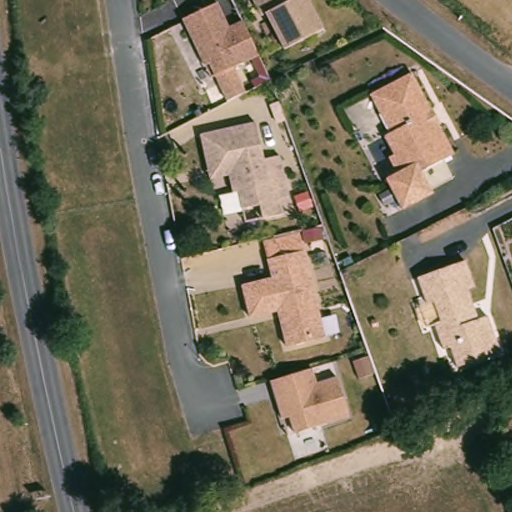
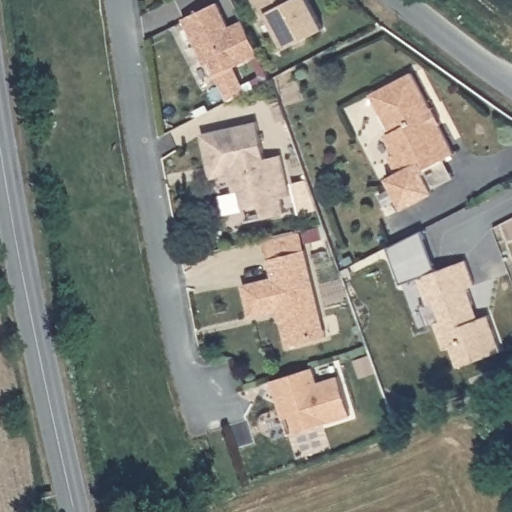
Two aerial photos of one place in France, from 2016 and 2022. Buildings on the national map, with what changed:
unchanged [(255,53),(210,73),(205,61),(200,63),(179,16),(213,0),(225,25),(239,19),(255,53)]
unchanged [(278,47),(261,11),(256,13),(250,0),(304,0),(317,29),(278,47)]
unchanged [(436,185),(439,191),(408,206),(393,178),(402,173),(394,158),(398,155),(389,136),(394,132),(373,96),(415,73),(435,107),(437,106),(446,123),(443,125),(457,151),(448,156),(457,174),(436,185)]
unchanged [(201,167),(194,134),(249,121),(257,158),(272,154),(282,195),(273,197),(277,212),(256,217),(253,204),(236,208),(231,190),(226,191),(222,173),(204,178),(201,167)]
unchanged [(300,191),(305,204),(293,209),(288,195),(300,191)]
unchanged [(329,338),(301,345),(292,309),(264,316),(256,284),(286,277),(281,258),(317,248),(335,316),(339,335),(329,338)]
unchanged [(466,260),(474,286),(469,288),(480,315),(489,313),(500,346),(460,362),(452,345),(444,348),(435,322),(443,318),(435,301),(429,304),(418,276),(466,260)]
unchanged [(277,418),(270,396),(265,380),(271,378),(275,378),(282,375),(306,368),(311,383),(332,376),(345,415),(290,433),(285,416),(277,418)]

